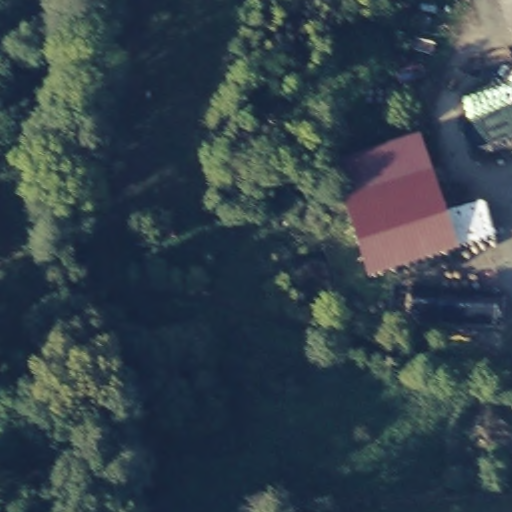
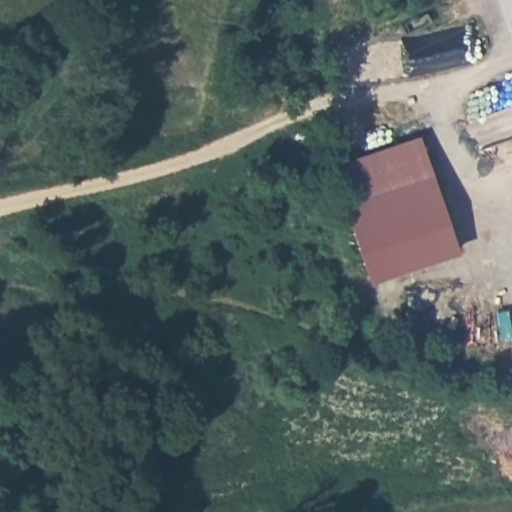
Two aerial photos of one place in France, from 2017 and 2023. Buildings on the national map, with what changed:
unchanged [(421,134),(457,250),(368,280),(332,166),(421,134)]

